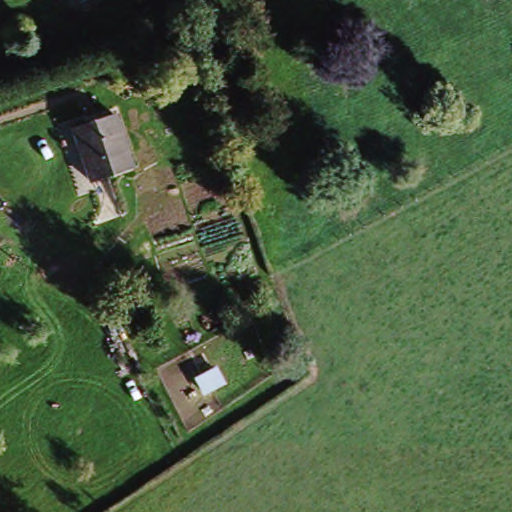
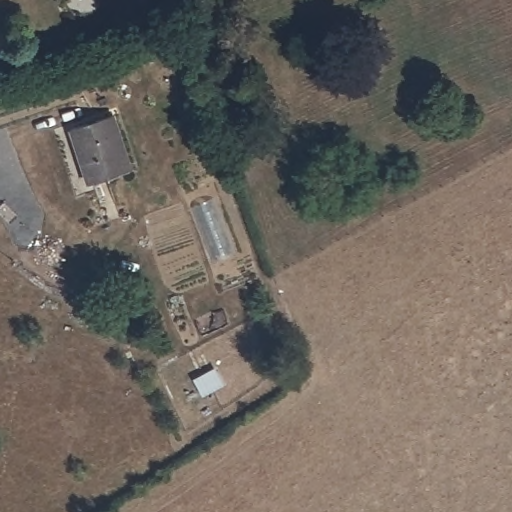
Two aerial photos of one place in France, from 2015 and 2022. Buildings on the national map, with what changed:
unchanged [(92,177),(74,127),(114,112),(132,162),(92,177)]

